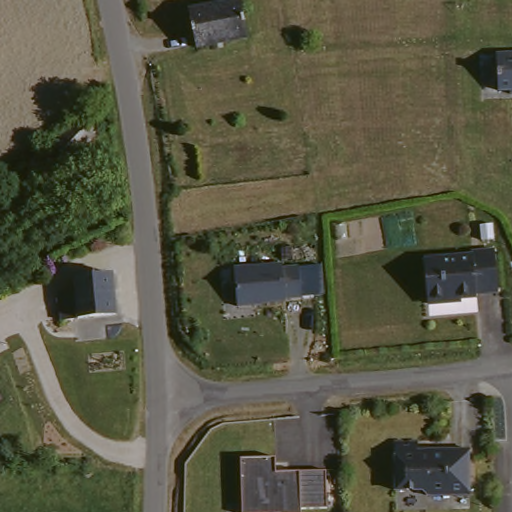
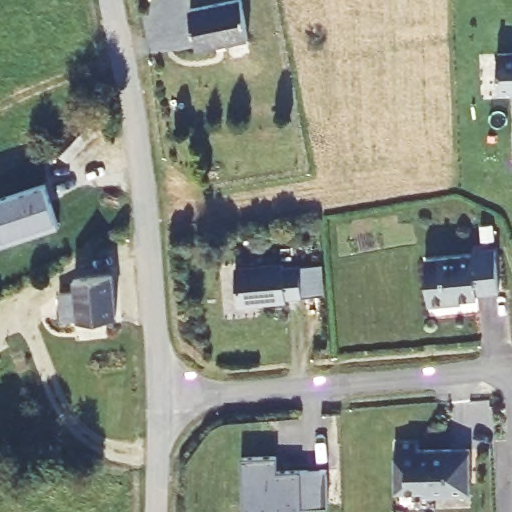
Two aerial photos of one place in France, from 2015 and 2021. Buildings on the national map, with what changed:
unchanged [(242,0),(248,33),(197,42),(191,2),(205,0),(242,0)]
unchanged [(512,94),(509,94),(509,90),(497,91),(494,54),(512,53),(512,94)]
unchanged [(90,115),(104,130),(74,158),(62,141),(90,115)]
new [(0,244),(0,199),(45,184),(56,219),(58,226),(0,244)]
unchanged [(478,247),(478,242),(502,240),(505,282),(484,283),(484,288),(454,290),(454,293),(434,294),(431,250),(478,247)]
unchanged [(281,266),(282,269),(297,268),(300,298),(285,299),(285,302),(256,305),(256,306),(237,308),(233,271),(281,266)]
unchanged [(78,283),(78,276),(119,272),(121,315),(64,320),(63,283),(78,283)]
unchanged [(418,441),(419,448),(471,446),(473,494),(428,494),(424,488),(396,489),(395,441),(418,441)]
unchanged [(239,457),(279,458),(278,466),(323,467),(327,509),(299,505),(299,512),(257,512),(238,510),(239,457)]

